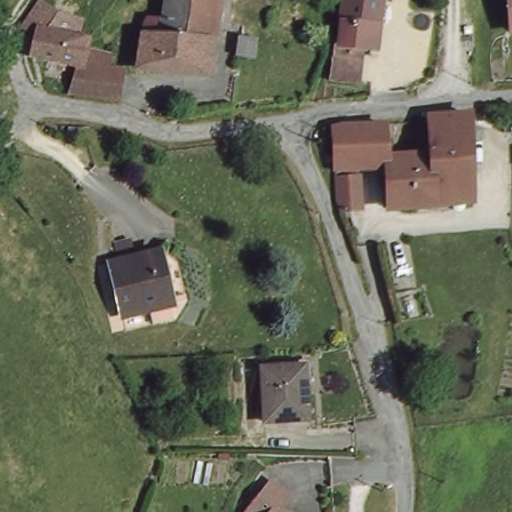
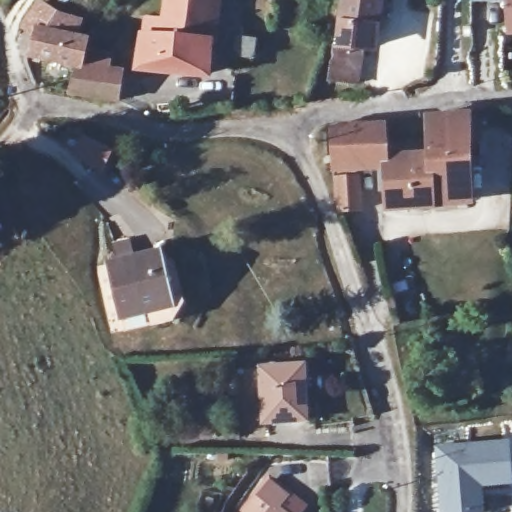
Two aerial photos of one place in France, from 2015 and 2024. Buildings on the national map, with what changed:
unchanged [(167,21),(173,0),(220,0),(210,79),(147,70),(152,38),(152,22),(167,21)]
unchanged [(377,33),(367,32),(365,54),(360,53),(333,49),(334,48),(341,0),(381,0),(377,33)]
unchanged [(510,33),(507,0),(512,0),(512,33),(510,33)]
unchanged [(20,70),(35,35),(62,38),(62,58),(69,58),(90,60),(91,84),(107,86),(107,109),(92,109),(63,108),(67,82),(20,70)]
unchanged [(355,88),(327,84),(330,47),(334,48),(333,49),(360,53),(355,88)]
unchanged [(340,204),(332,129),(388,124),(390,158),(430,154),(432,120),(472,116),(470,195),(382,213),(378,179),(356,179),(358,220),(344,220),(342,212),(340,204)]
unchanged [(182,300),(172,319),(155,324),(151,310),(120,319),(104,268),(151,254),(165,297),(179,293),(182,300)]
unchanged [(268,428),(263,373),(307,369),(310,425),(268,428)]
new [(483,487),(485,512),(441,512),(435,447),(508,440),(512,484),(483,487)]
unchanged [(277,505),(271,512),(243,512),(259,491),(277,505)]

